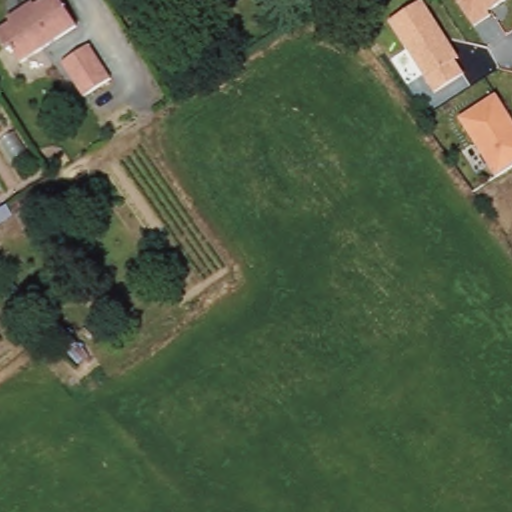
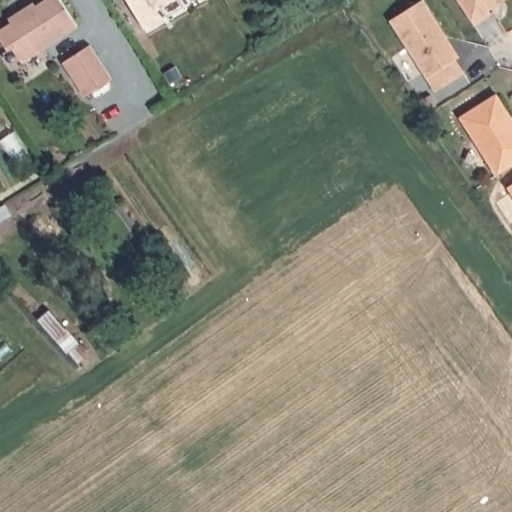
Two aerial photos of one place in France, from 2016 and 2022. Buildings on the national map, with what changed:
unchanged [(22,1),(24,0),(37,0),(37,1),(38,0),(66,0),(82,26),(45,50),(27,61),(15,43),(11,42),(0,24),(0,23),(20,11),(22,1)]
new [(161,21),(144,31),(127,0),(168,0),(153,9),(161,21)]
unchanged [(389,15),(413,0),(425,0),(439,23),(458,53),(454,55),(462,68),(434,86),(389,15)]
unchanged [(496,0),(487,6),(490,10),(473,20),(461,0),(496,0)]
unchanged [(90,42),(113,79),(87,95),(64,59),(90,42)]
unchanged [(495,91),(512,118),(512,162),(504,168),(495,173),(458,114),(495,91)]

